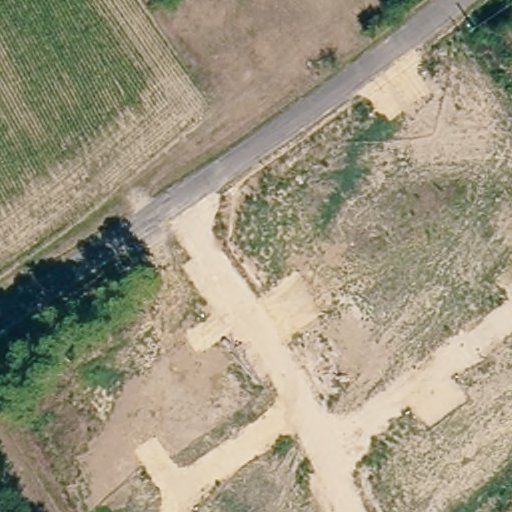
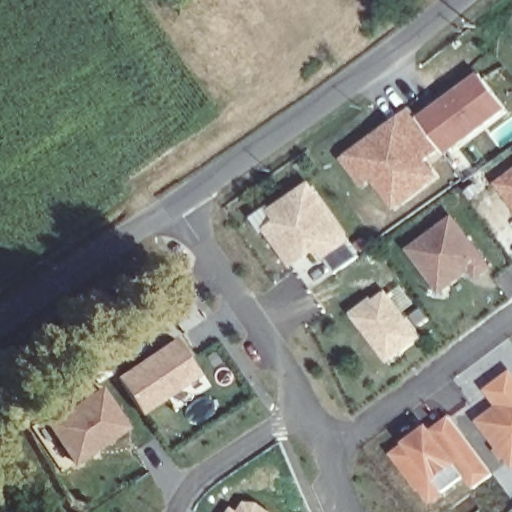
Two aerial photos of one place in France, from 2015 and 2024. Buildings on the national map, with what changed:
new [(444,154),(439,148),(424,160),(438,177),(393,209),(373,181),(362,187),(342,158),(411,107),(419,117),(479,71),(506,108),(444,154)]
new [(495,184),(512,171),(512,207),(495,184)]
new [(290,260),(270,230),(283,222),(275,211),(311,186),(349,240),(360,257),(335,274),(324,257),(318,248),(304,257),(294,265),(290,260)]
unchanged [(454,218),(492,268),(479,277),(473,269),(452,284),(435,283),(411,250),(454,218)]
demolished [(334,323),(284,383),(251,358),(259,348),(213,311),(246,272),(296,313),(299,315),(308,304),(334,323)]
new [(387,362),(351,313),(372,298),(374,300),(388,291),(422,337),(387,362)]
new [(141,414),(117,376),(174,336),(200,374),(141,414)]
new [(502,407),(491,391),(512,375),(512,463),(482,422),(502,407)]
new [(73,464),(45,424),(101,385),(129,426),(73,464)]
new [(430,428),(432,430),(451,417),(494,475),(475,488),(466,476),(433,501),(423,488),(422,489),(395,454),(430,428)]
new [(259,501),(275,512),(241,512),(247,503),(259,501)]
new [(239,512),(231,512),(234,508),(239,512)]

